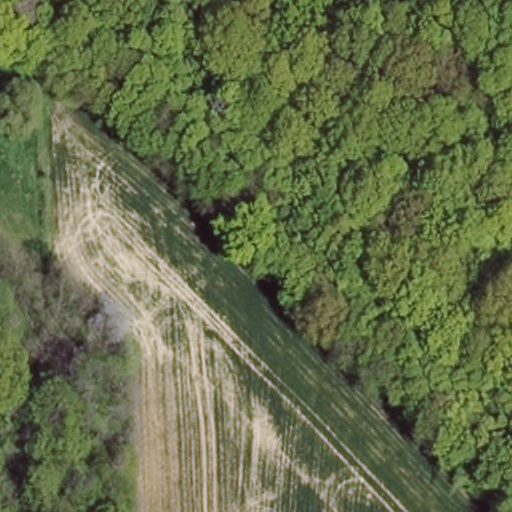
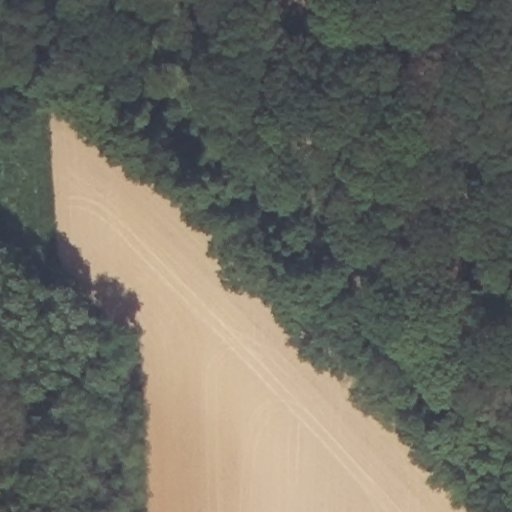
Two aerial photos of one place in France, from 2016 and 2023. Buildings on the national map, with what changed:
[]

